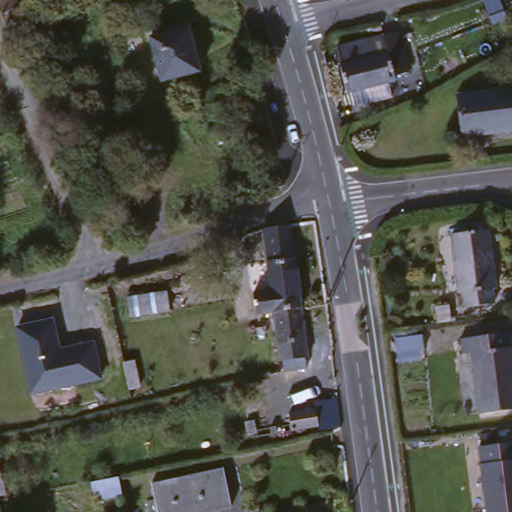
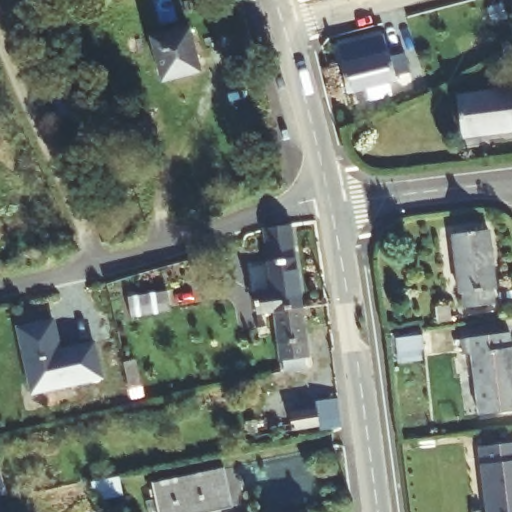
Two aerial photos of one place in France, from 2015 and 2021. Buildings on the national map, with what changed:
unchanged [(190,27),(200,70),(167,77),(159,33),(190,27)]
unchanged [(382,34),(389,59),(404,56),(408,70),(393,74),(395,80),(350,92),(336,46),(382,34)]
unchanged [(57,79),(65,104),(52,109),(44,84),(57,79)]
unchanged [(512,132),(466,138),(459,98),(512,90),(512,132)]
unchanged [(294,225),(307,300),(274,304),(255,307),(251,284),(270,281),(262,232),(273,228),(294,225)]
unchanged [(487,227),(500,287),(495,288),(497,304),(465,310),(449,234),(487,227)]
unchanged [(165,287),(173,307),(135,320),(127,301),(165,287)]
unchanged [(315,369),(287,373),(285,366),(283,358),(274,304),(307,300),(317,355),(312,356),(315,369)]
unchanged [(457,306),(460,319),(442,322),(440,309),(457,306)]
unchanged [(32,393),(15,326),(56,318),(62,348),(93,342),(102,377),(32,393)]
unchanged [(512,342),(512,412),(483,417),(474,357),(465,359),(462,341),(510,333),(512,342)]
unchanged [(419,346),(421,360),(395,364),(393,350),(419,346)]
unchanged [(328,389),(333,422),(307,430),(305,422),(287,428),(280,408),(305,400),(303,397),(328,389)]
unchanged [(512,512),(491,512),(486,475),(477,477),(474,453),(512,447),(512,512)]
unchanged [(230,511),(228,512),(160,512),(154,488),(220,473),(230,511)]
unchanged [(112,478),(117,494),(90,501),(85,486),(112,478)]

